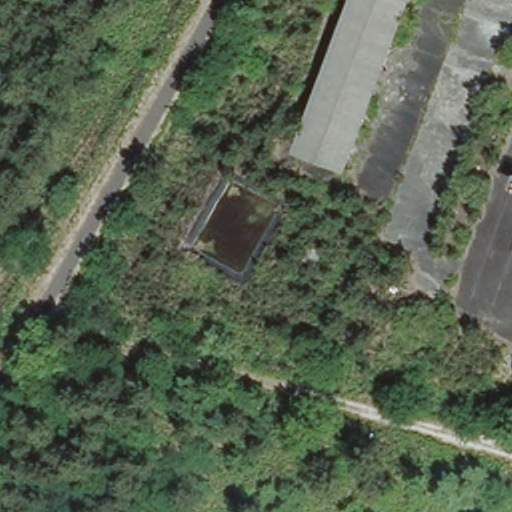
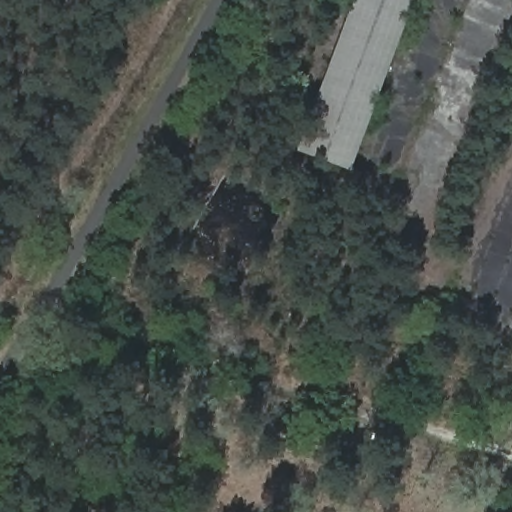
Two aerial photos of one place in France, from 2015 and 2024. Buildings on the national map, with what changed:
unchanged [(349,172),(294,152),(351,0),(414,0),(349,172)]

